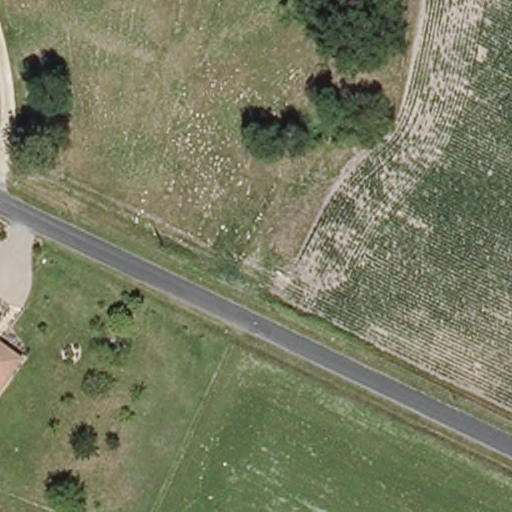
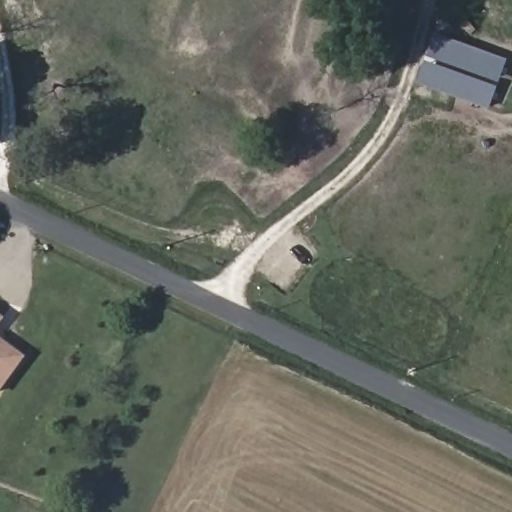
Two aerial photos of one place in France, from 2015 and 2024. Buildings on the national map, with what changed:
new [(435,33),(506,58),(488,108),(415,81),(435,33)]
unchanged [(7,318),(0,328),(0,313),(7,318)]
unchanged [(25,358),(0,390),(0,339),(25,358)]

